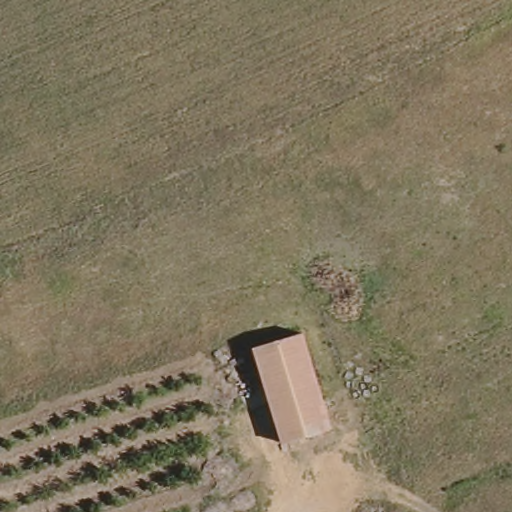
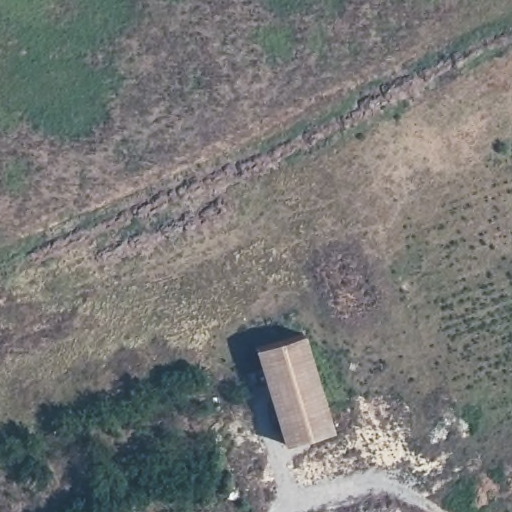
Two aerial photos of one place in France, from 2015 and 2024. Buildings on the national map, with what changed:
unchanged [(287,438),(262,348),(305,332),(334,423),(287,438)]

